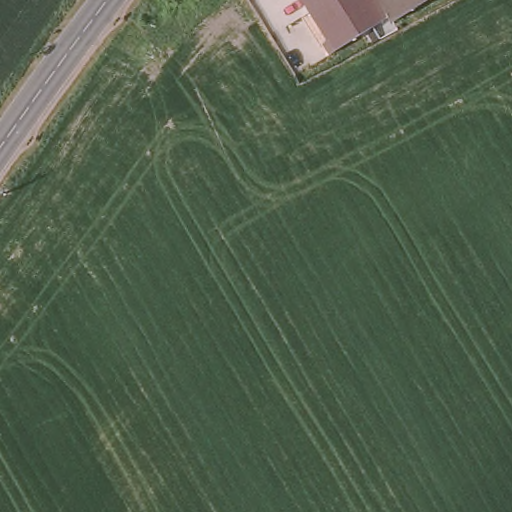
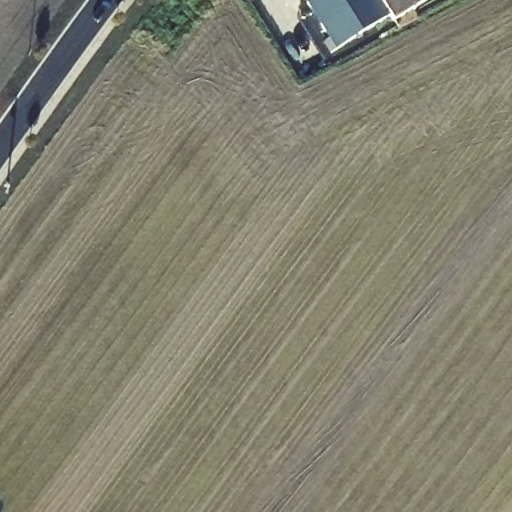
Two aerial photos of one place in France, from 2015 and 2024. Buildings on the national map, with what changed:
unchanged [(387,21),(331,52),(330,49),(324,52),(319,42),(324,39),(302,0),(413,0),(387,21)]

